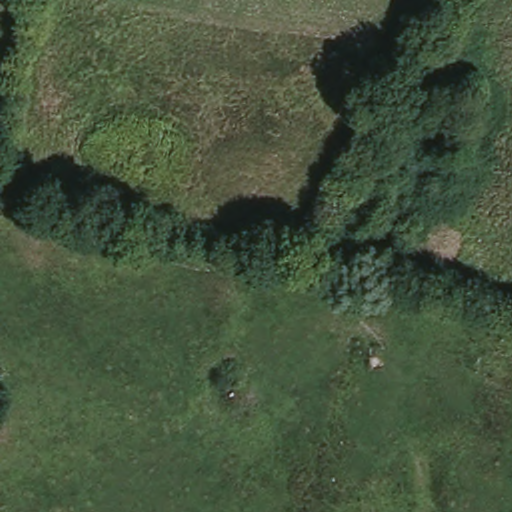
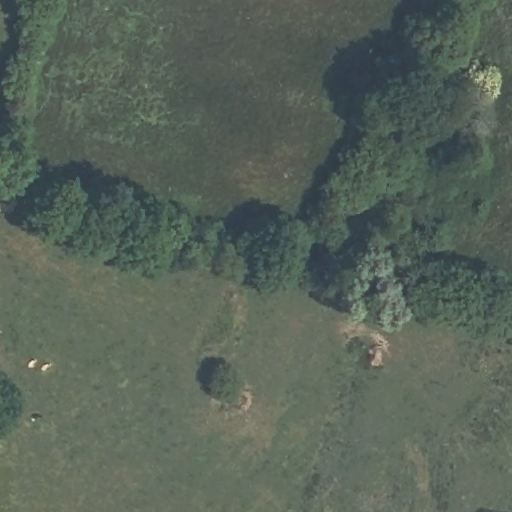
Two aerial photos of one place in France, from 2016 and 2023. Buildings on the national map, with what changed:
[]

